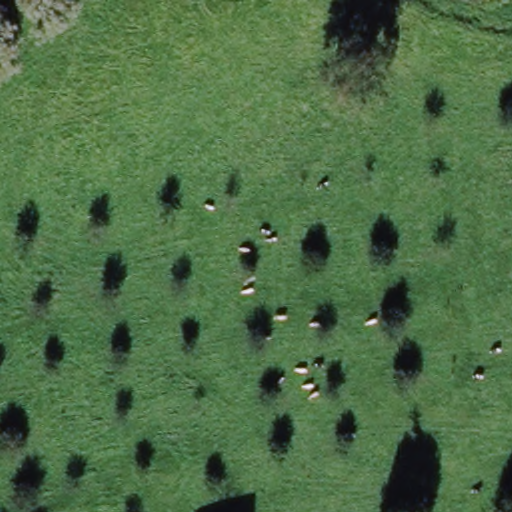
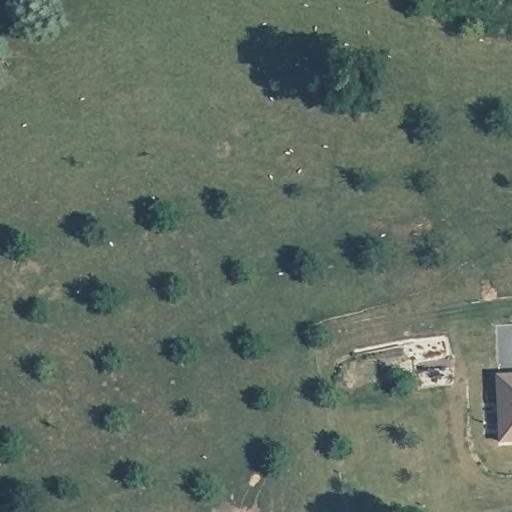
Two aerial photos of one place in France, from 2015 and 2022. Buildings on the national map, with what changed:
new [(512,442),(502,442),(499,376),(512,376),(512,442)]

